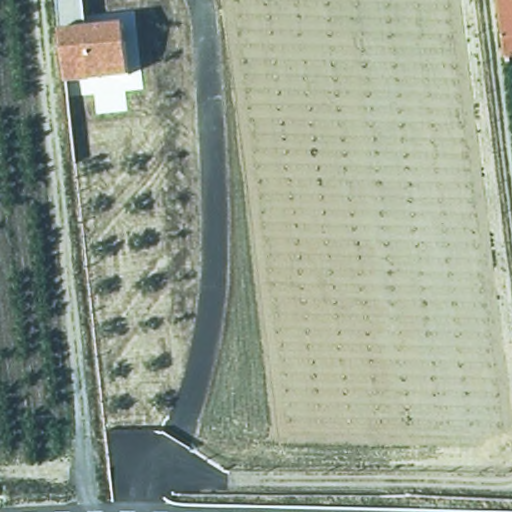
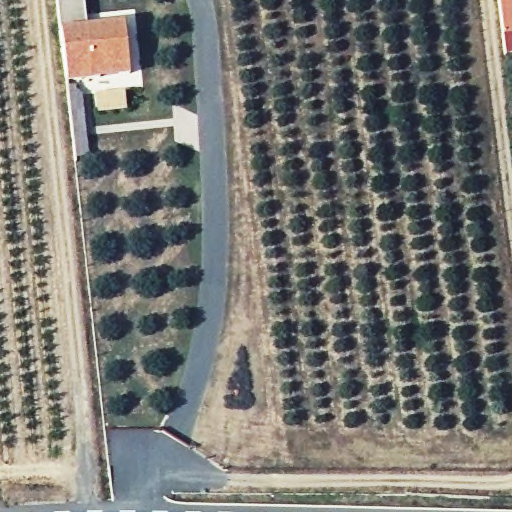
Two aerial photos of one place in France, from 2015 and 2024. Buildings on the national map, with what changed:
unchanged [(83,0),(85,25),(60,28),(57,0),(83,0)]
unchanged [(493,0),(512,0),(512,58),(500,59),(493,0)]
unchanged [(125,75),(60,81),(55,28),(60,28),(85,25),(120,22),(125,75)]

